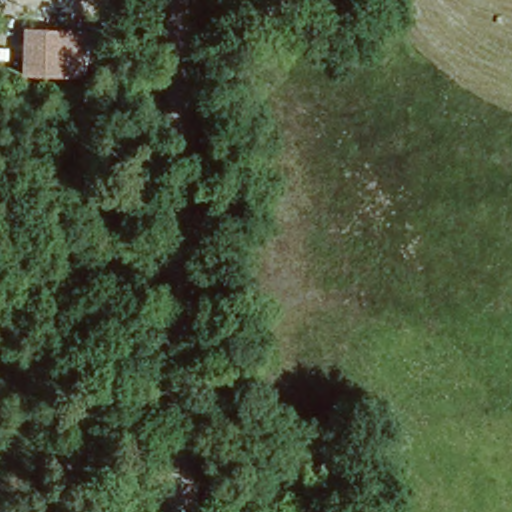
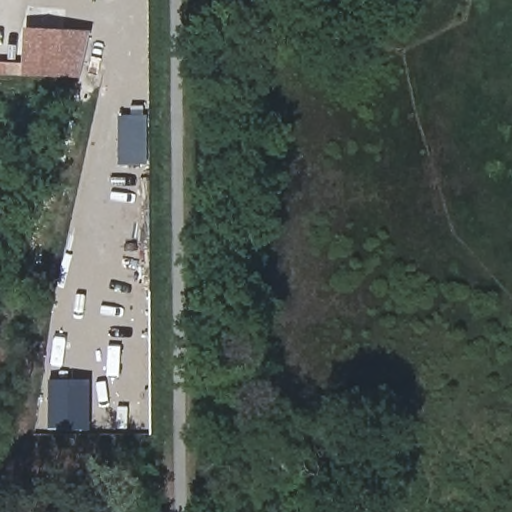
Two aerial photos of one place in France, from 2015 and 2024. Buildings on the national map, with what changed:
unchanged [(64,28),(60,75),(25,75),(26,26),(64,28)]
new [(120,117),(132,116),(132,106),(144,105),(145,117),(148,117),(150,152),(146,152),(146,165),(122,166),(120,117)]
new [(91,429),(48,427),(50,378),(90,380),(91,429)]

